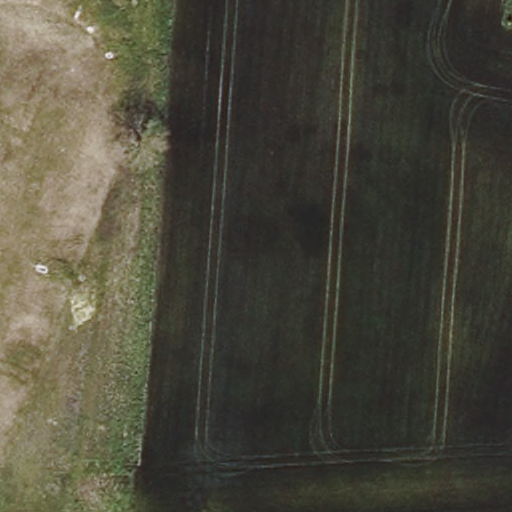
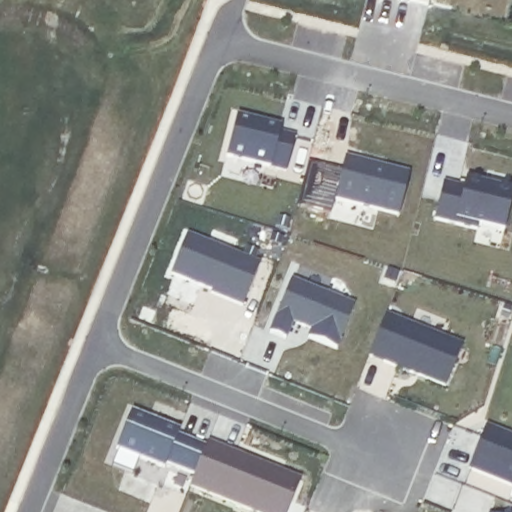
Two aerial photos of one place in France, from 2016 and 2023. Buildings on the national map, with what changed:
new [(280,128),(280,133),(293,136),(285,172),(225,157),(236,115),(280,128)]
new [(408,173),(397,216),(332,200),(343,156),(408,173)]
new [(462,188),(465,180),(512,191),(512,193),(504,231),(477,225),(478,229),(432,219),(441,182),(462,188)]
new [(186,233),(260,265),(241,307),(208,293),(209,290),(170,274),(186,233)]
new [(289,278),(353,305),(337,350),(305,337),(308,331),(292,325),(287,340),(267,331),(289,278)]
new [(385,314),(461,346),(445,387),(368,357),(385,314)]
new [(191,475),(166,464),(165,468),(116,449),(130,410),(180,430),(178,435),(205,445),(206,441),(300,479),(287,512),(249,512),(187,488),(191,475)]
new [(512,436),(512,487),(467,470),(486,426),(512,436)]

